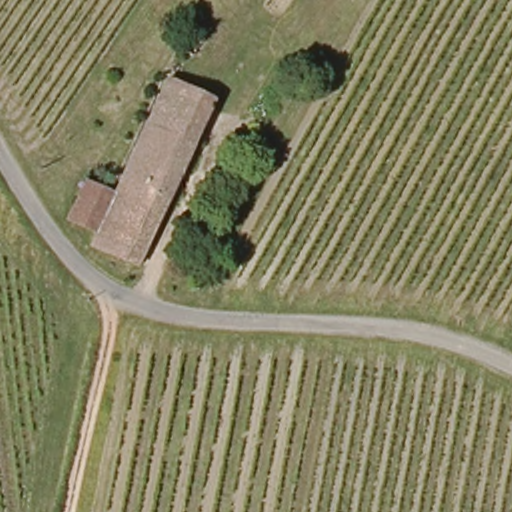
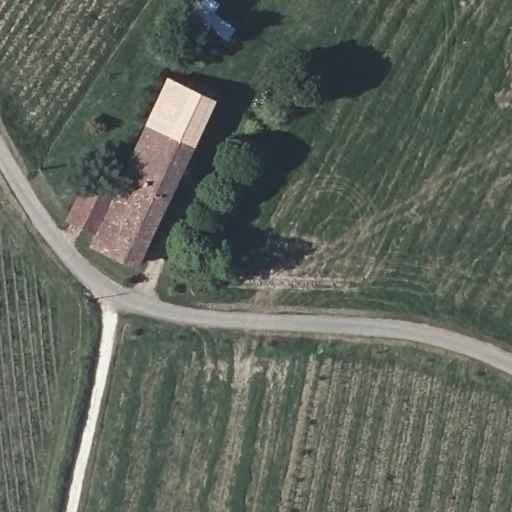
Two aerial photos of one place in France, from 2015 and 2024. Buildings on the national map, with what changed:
unchanged [(194,59),(181,51),(195,28),(208,36),(194,59)]
unchanged [(136,268),(91,245),(96,236),(114,201),(169,85),(212,104),(136,268)]
unchanged [(69,222),(87,188),(114,201),(96,236),(69,222)]

